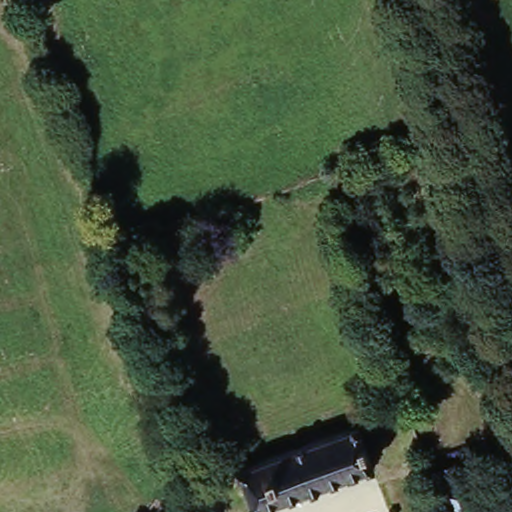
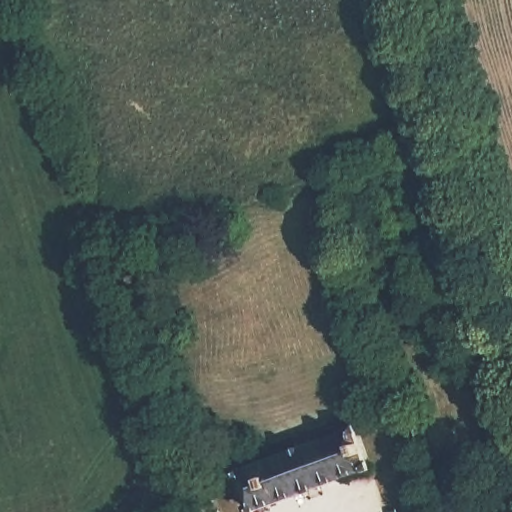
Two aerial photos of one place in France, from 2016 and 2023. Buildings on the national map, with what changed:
unchanged [(400,392),(403,406),(387,411),(383,398),(400,392)]
unchanged [(360,435),(375,472),(267,512),(258,512),(244,477),(360,435)]
unchanged [(467,457),(474,475),(435,492),(427,472),(467,457)]
unchanged [(177,470),(179,469),(196,464),(214,512),(194,512),(177,470)]
unchanged [(466,512),(441,512),(435,497),(477,482),(485,505),(466,512)]
unchanged [(482,506),(485,505),(488,512),(465,512),(482,506)]

